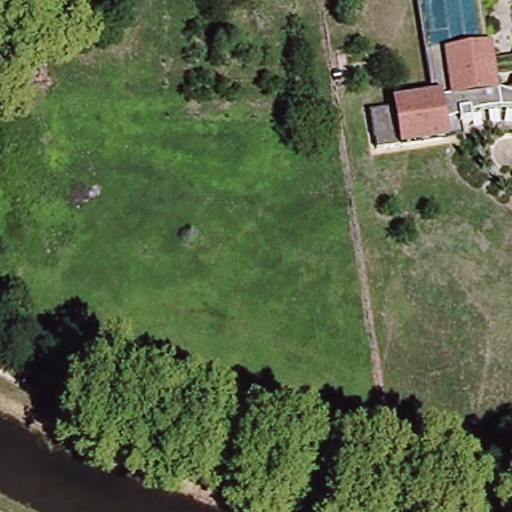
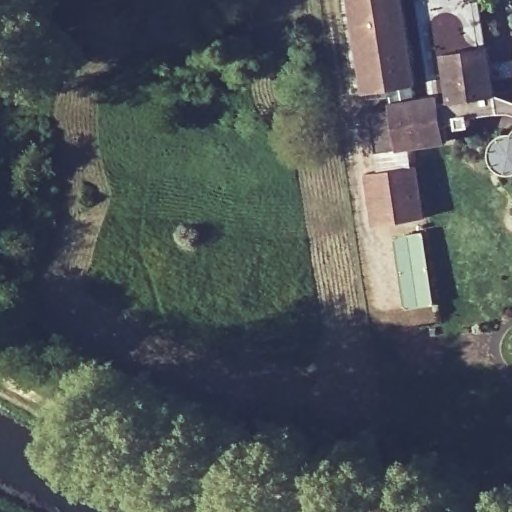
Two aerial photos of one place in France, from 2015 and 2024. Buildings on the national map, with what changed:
new [(341,0),(404,0),(417,82),(361,90),(355,92),(341,0)]
unchanged [(498,111),(483,110),(463,116),(464,126),(453,127),(453,122),(438,127),(441,142),(370,155),(363,115),(388,110),(387,102),(399,101),(430,96),(415,0),(467,0),(474,44),(483,42),(491,91),(504,87),(512,65),(512,114),(498,111)]
new [(418,164),(426,216),(374,225),(366,172),(418,164)]
new [(423,232),(433,303),(405,307),(393,236),(423,232)]

